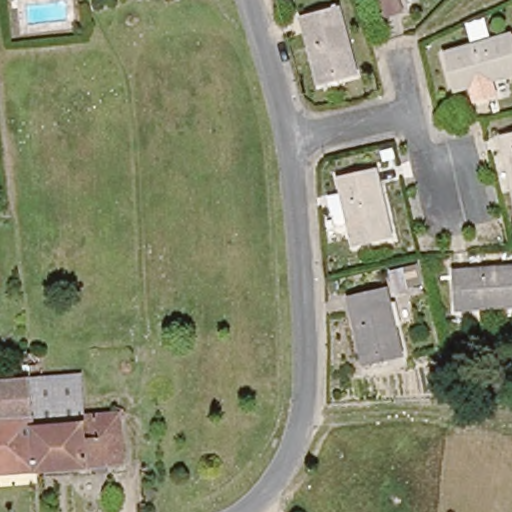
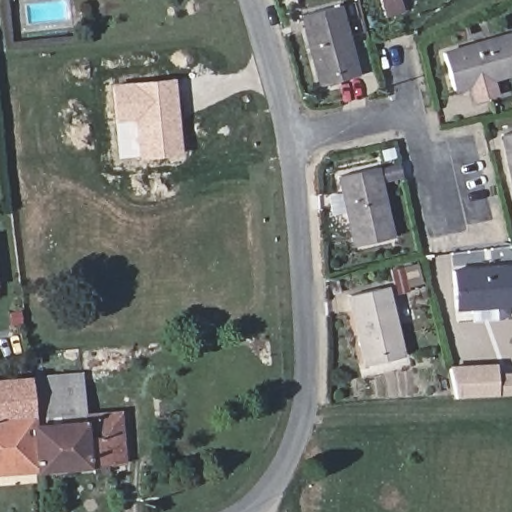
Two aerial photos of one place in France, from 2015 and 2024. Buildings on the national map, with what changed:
unchanged [(398,0),(401,10),(386,16),(381,0),(398,0)]
unchanged [(330,83),(320,85),(302,16),(338,7),(357,75),(338,80),(339,85),(331,86),(330,83)]
unchanged [(443,49),(512,30),(512,69),(491,75),(495,91),(475,98),(471,81),(454,85),(443,49)]
new [(174,78),(182,156),(137,160),(133,120),(113,122),(110,84),(174,78)]
unchanged [(502,136),(512,133),(512,181),(502,136)]
unchanged [(338,176),(376,168),(392,237),(355,246),(338,176)]
unchanged [(455,302),(453,271),(512,267),(512,305),(470,308),(456,309),(455,302)]
unchanged [(396,295),(390,271),(405,268),(410,292),(396,295)]
unchanged [(366,365),(350,296),(380,289),(387,288),(390,301),(402,357),(366,365)]
unchanged [(94,467),(37,471),(0,474),(0,381),(30,379),(29,359),(28,358),(27,353),(39,352),(42,377),(81,375),(83,416),(120,413),(124,464),(109,466),(109,472),(94,473),(94,467)]
new [(512,366),(512,395),(453,398),(452,366),(497,363),(512,366)]

